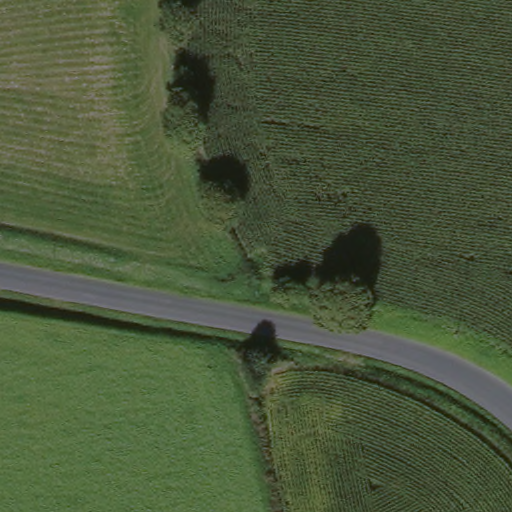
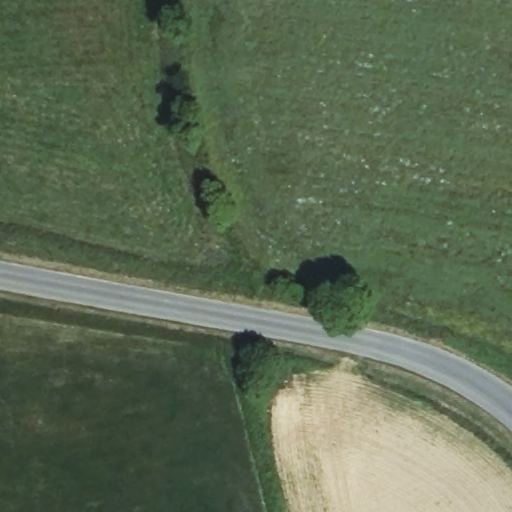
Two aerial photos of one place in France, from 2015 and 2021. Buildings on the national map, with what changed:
[]

